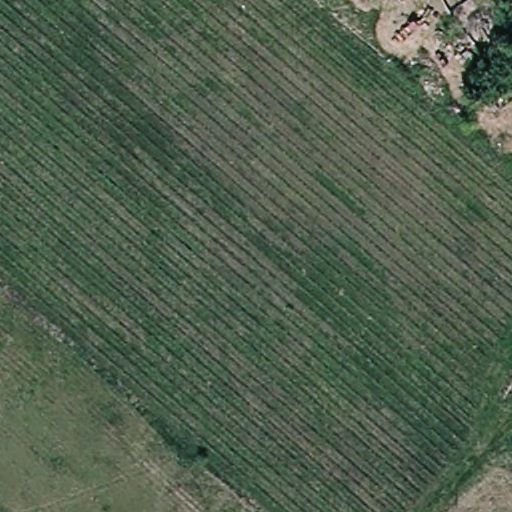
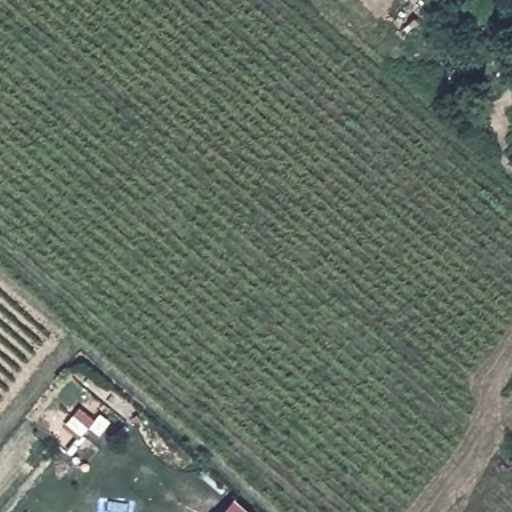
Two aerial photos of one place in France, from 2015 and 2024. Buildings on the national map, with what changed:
new [(251,512),(222,512),(235,497),(251,512)]

